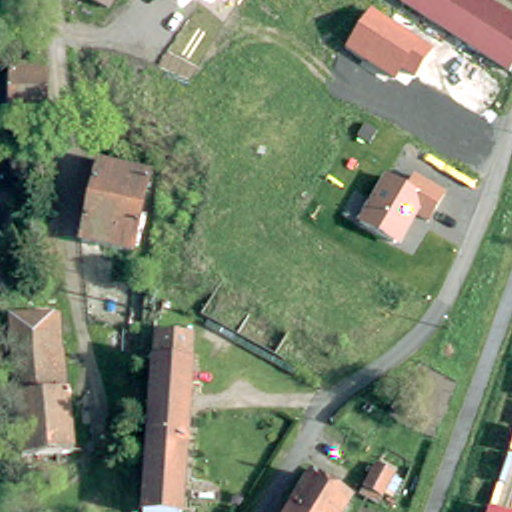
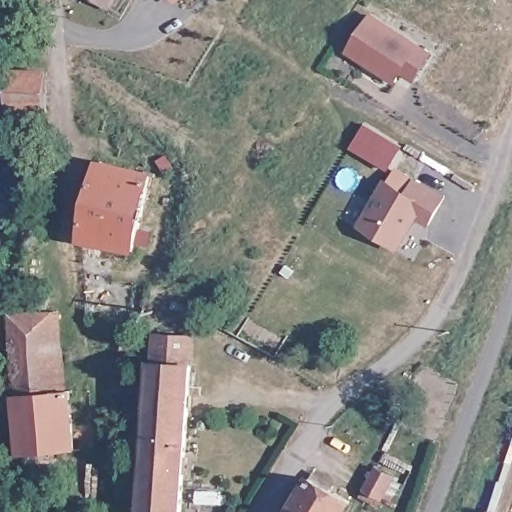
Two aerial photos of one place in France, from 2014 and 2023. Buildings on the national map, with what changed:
unchanged [(101,0),(111,0),(109,5),(101,0)]
unchanged [(172,0),(174,0),(172,1),(172,0)]
demolished [(410,0),(512,0),(512,73),(510,78),(404,11),(410,0)]
unchanged [(435,53),(413,84),(400,76),(392,86),(344,53),(370,12),(435,53)]
unchanged [(49,99),(32,100),(14,99),(13,63),(21,63),(47,61),(49,99)]
unchanged [(42,136),(36,119),(48,114),(54,132),(42,136)]
unchanged [(84,195),(87,185),(91,186),(97,161),(148,174),(132,247),(81,236),(90,196),(84,195)]
unchanged [(407,191),(415,178),(446,199),(429,226),(419,222),(403,248),(360,224),(384,178),(407,191)]
unchanged [(202,265),(220,277),(211,290),(194,279),(202,265)]
unchanged [(10,310),(51,308),(55,384),(15,387),(10,310)]
unchanged [(182,512),(158,512),(144,511),(155,378),(157,358),(160,332),(196,336),(192,362),(196,362),(182,512)]
unchanged [(67,384),(70,441),(18,444),(15,387),(55,384),(67,384)]
unchanged [(372,470),(389,480),(377,501),(372,508),(357,498),(361,491),(372,470)]
unchanged [(287,510),(305,480),(346,504),(341,512),(291,512),(287,510)]
unchanged [(291,512),(286,512),(287,510),(291,512)]
unchanged [(484,511),(486,512),(483,512),(484,511)]

